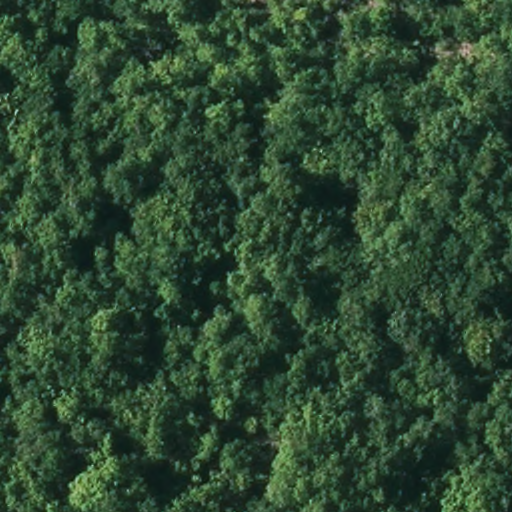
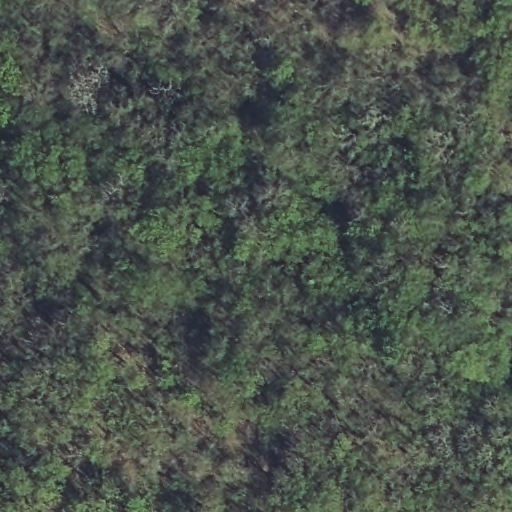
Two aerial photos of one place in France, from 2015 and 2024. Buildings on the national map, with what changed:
[]

